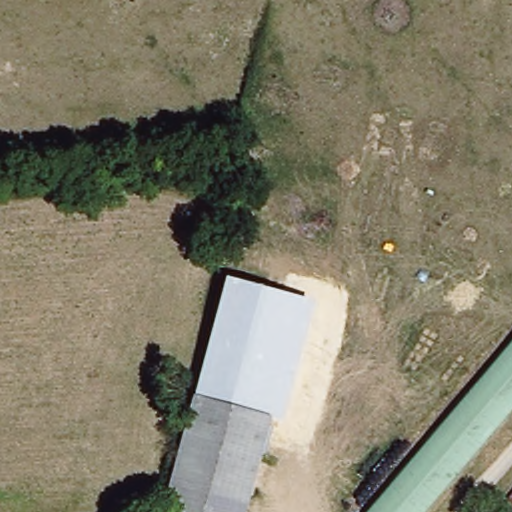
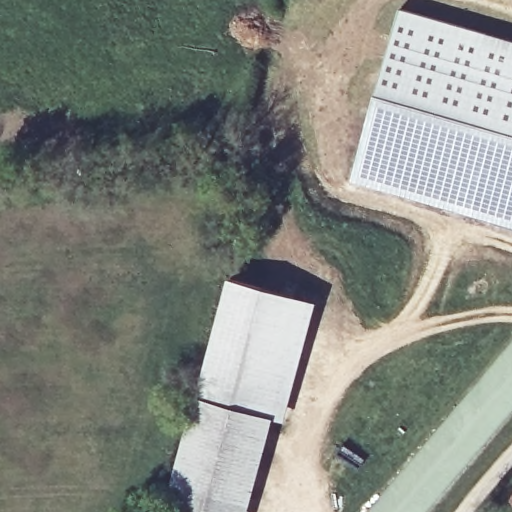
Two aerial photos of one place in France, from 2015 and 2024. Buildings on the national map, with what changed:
new [(512,39),(512,225),(352,178),(401,7),(512,39)]
unchanged [(197,395),(230,279),(317,302),(285,420),(197,395)]
unchanged [(512,412),(424,512),(363,512),(512,342),(512,412)]
unchanged [(247,512),(171,512),(198,404),(271,424),(247,512)]
unchanged [(512,494),(512,501),(508,497),(512,494)]

